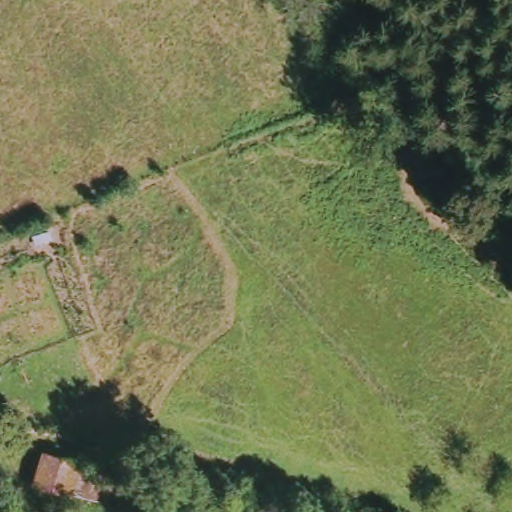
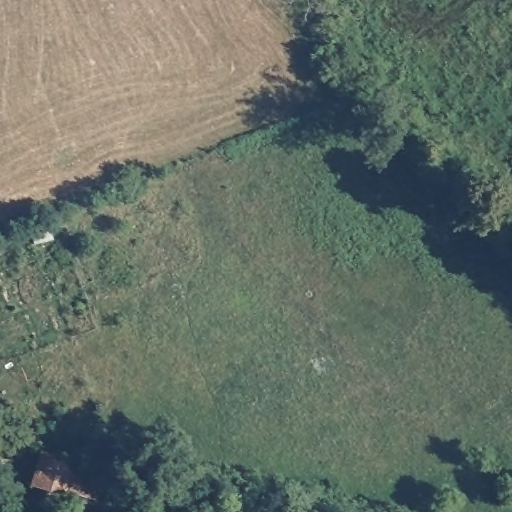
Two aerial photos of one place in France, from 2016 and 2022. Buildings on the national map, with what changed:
unchanged [(66,488),(33,479),(41,445),(76,453),(66,488)]

